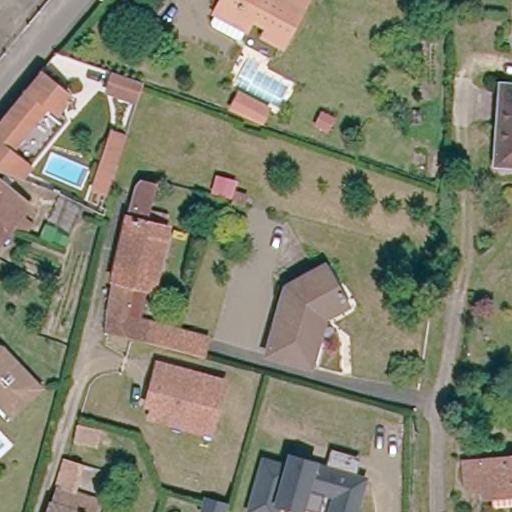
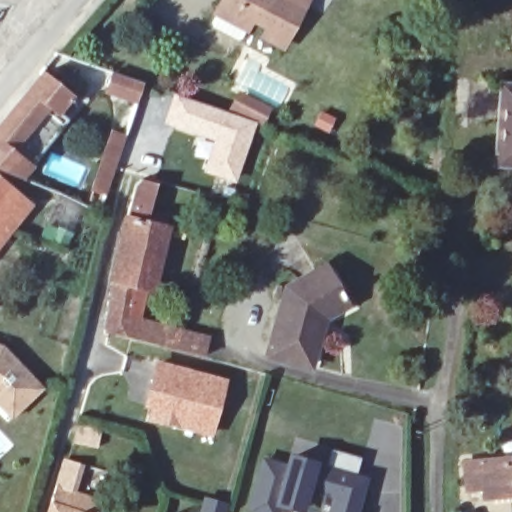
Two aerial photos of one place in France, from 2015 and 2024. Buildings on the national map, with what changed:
unchanged [(219,11),(224,0),(286,0),(302,9),(281,50),(265,41),(269,34),(251,24),(246,34),(215,18),(219,11)]
unchanged [(69,91),(55,106),(62,113),(60,116),(15,170),(0,165),(0,118),(40,69),(69,91)]
unchanged [(107,92),(114,73),(143,83),(136,102),(107,92)]
unchanged [(512,164),(495,163),(500,84),(512,85),(512,164)]
new [(173,93),(257,123),(236,183),(202,173),(214,141),(163,123),(173,93)]
unchanged [(239,94),(268,109),(261,121),(232,106),(239,94)]
unchanged [(333,118),(327,130),(315,125),(321,113),(333,118)]
unchanged [(106,189),(105,193),(93,189),(112,133),(124,136),(106,189)]
demolished [(416,159),(416,146),(435,146),(435,160),(416,159)]
unchanged [(10,185),(0,197),(0,177),(10,185)]
unchanged [(145,288),(132,284),(111,279),(126,218),(130,198),(134,187),(140,179),(154,183),(147,210),(167,215),(165,228),(167,229),(154,289),(145,288)]
unchanged [(31,203),(0,242),(0,197),(10,185),(31,203)]
unchanged [(344,305),(320,319),(317,327),(320,329),(308,365),(268,354),(286,288),(322,267),(344,305)]
unchanged [(207,338),(202,357),(145,342),(104,332),(106,311),(111,279),(132,284),(145,288),(138,319),(150,323),(177,330),(207,338)]
unchanged [(1,347),(41,388),(10,418),(0,407),(0,346),(1,347)]
unchanged [(189,421),(155,413),(159,402),(151,399),(154,390),(162,359),(229,376),(218,416),(215,428),(189,421)]
unchanged [(102,432),(98,448),(74,441),(79,424),(102,432)]
unchanged [(350,511),(355,512),(326,512),(332,491),(303,483),(297,504),(275,498),(271,512),(263,512),(245,507),(260,456),(283,462),(285,453),(297,457),(360,474),(350,511)]
unchanged [(512,494),(483,497),(482,487),(467,489),(464,462),(512,457),(512,494)]
unchanged [(55,488),(64,459),(81,465),(73,493),(100,500),(96,512),(48,512),(55,488)]
unchanged [(228,512),(220,512),(209,509),(212,494),(231,499),(228,512)]

